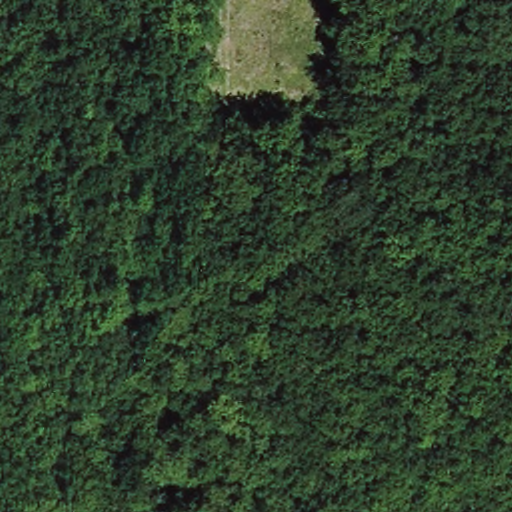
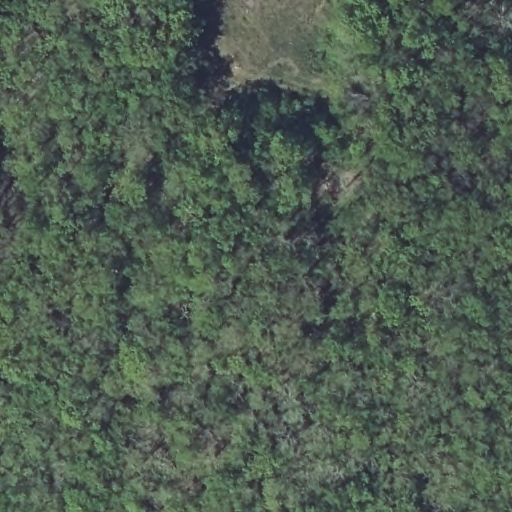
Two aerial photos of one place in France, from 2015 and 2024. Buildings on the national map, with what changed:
[]

